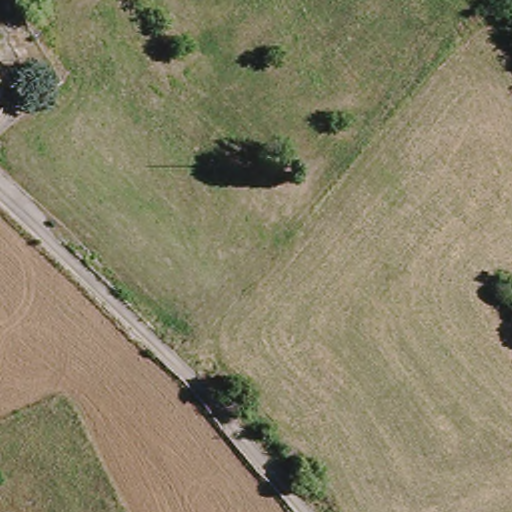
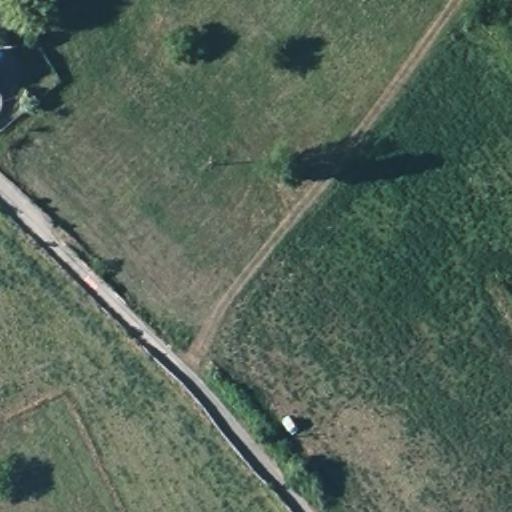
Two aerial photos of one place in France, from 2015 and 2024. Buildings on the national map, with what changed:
unchanged [(0,87),(0,68),(9,81),(0,87)]

